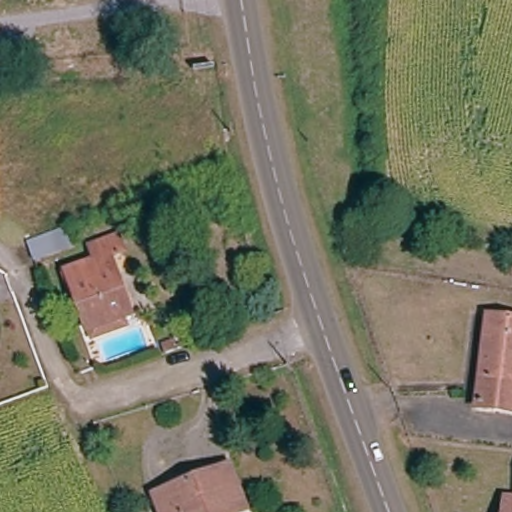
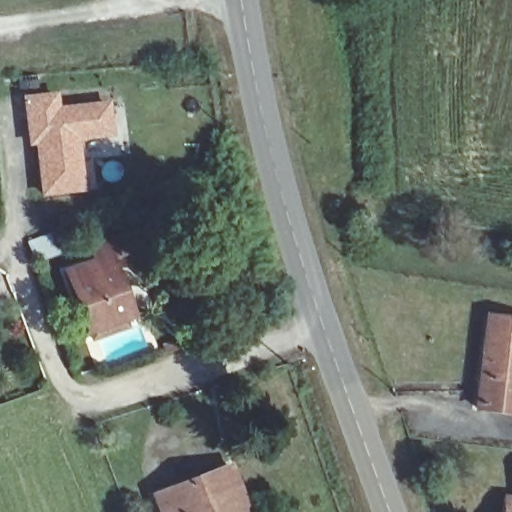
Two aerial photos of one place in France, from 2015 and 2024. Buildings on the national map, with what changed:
new [(58,107),(110,100),(114,137),(80,141),(85,192),(40,197),(34,146),(27,147),(21,97),(57,94),(58,107)]
unchanged [(120,319),(91,330),(71,273),(96,265),(91,249),(120,239),(126,254),(112,260),(117,277),(132,315),(120,319)]
unchanged [(512,415),(478,412),(486,321),(512,322),(512,415)]
unchanged [(224,463),(246,508),(238,512),(160,512),(154,496),(224,463)]
unchanged [(512,500),(512,512),(505,512),(507,500),(512,500)]

